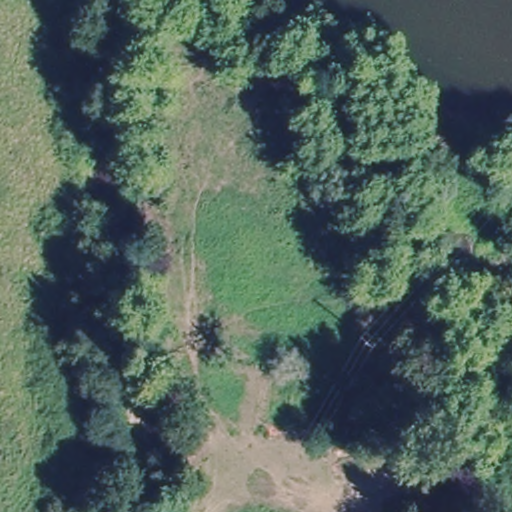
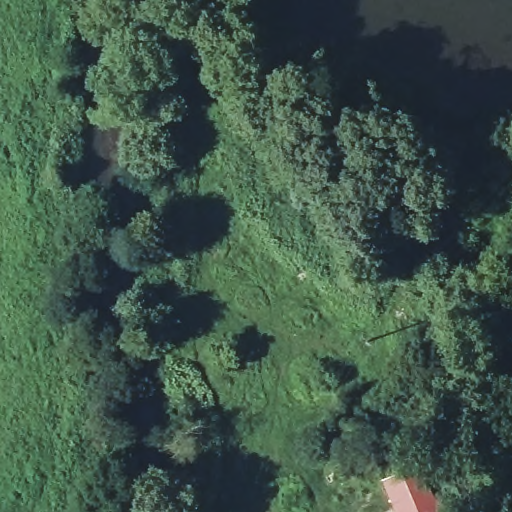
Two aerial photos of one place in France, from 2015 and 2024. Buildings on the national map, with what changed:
new [(420,460),(443,511),(439,512),(395,512),(381,479),(420,460)]

